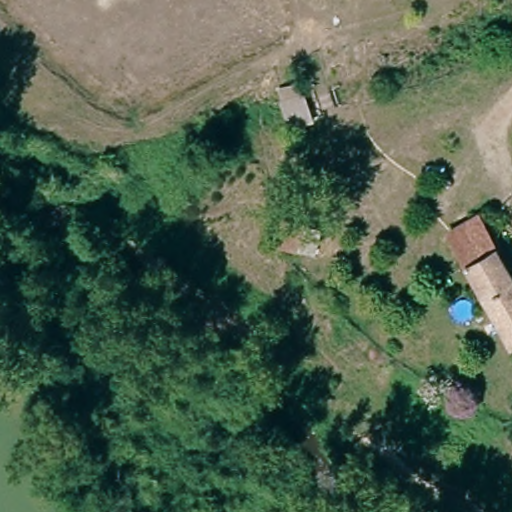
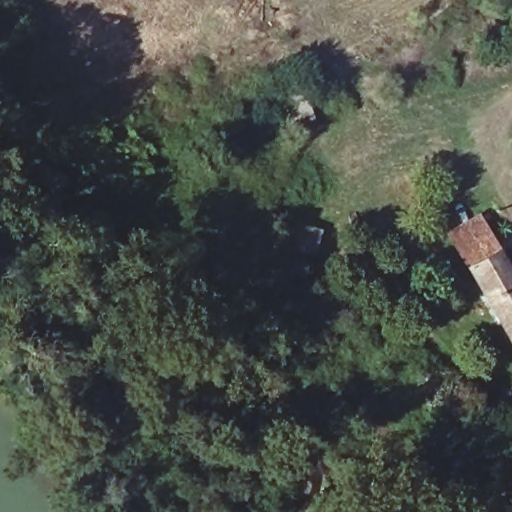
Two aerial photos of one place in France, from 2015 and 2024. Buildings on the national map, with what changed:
unchanged [(496,245),(512,270),(512,344),(510,345),(466,264),(448,232),(479,214),(496,245)]

